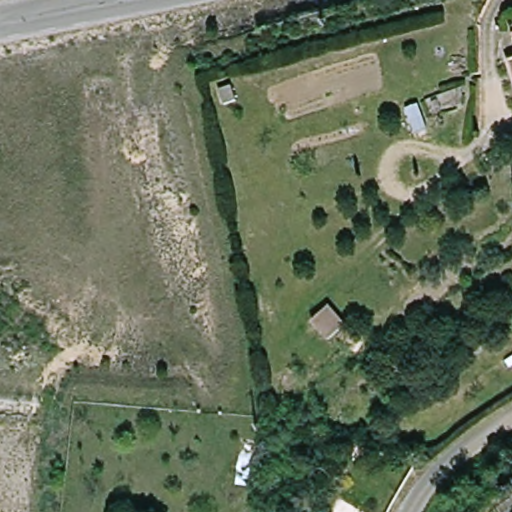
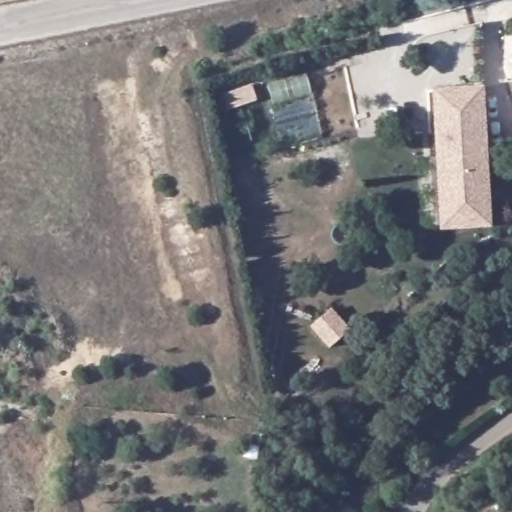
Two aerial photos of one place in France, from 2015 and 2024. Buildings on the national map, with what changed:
new [(434,90),(485,85),(493,229),(441,231),(434,90)]
unchanged [(318,326),(336,311),(354,330),(336,345),(318,326)]

